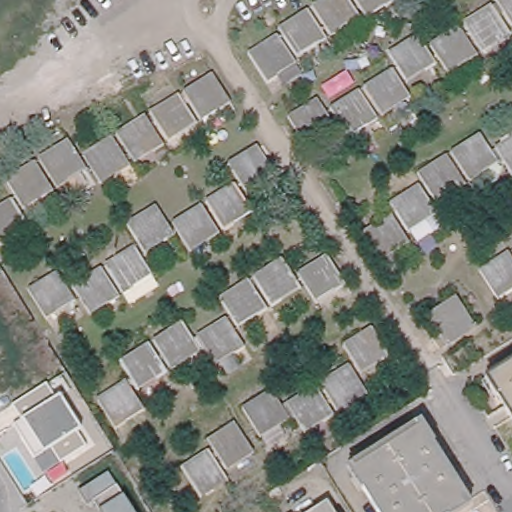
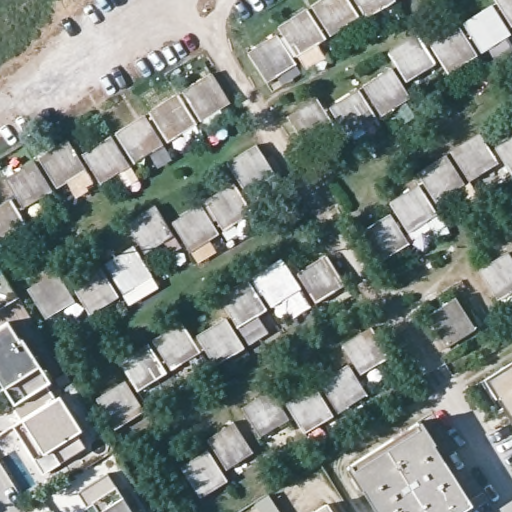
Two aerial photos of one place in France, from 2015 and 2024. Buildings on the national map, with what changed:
unchanged [(313,0),(348,0),(356,12),(329,30),(311,1),(313,0)]
unchanged [(365,13),(357,0),(386,0),(365,13)]
unchanged [(512,21),(499,0),(512,0),(512,21)]
unchanged [(305,5),(323,33),(296,50),(278,22),(305,5)]
unchanged [(495,6),(512,33),(485,51),(467,23),(495,6)]
unchanged [(461,27),(479,54),(451,72),(434,44),(461,27)]
unchanged [(294,60),(265,77),(248,48),(275,31),(294,60)]
unchanged [(420,36),(438,63),(410,81),(393,53),(420,36)]
unchanged [(199,116),(182,87),(210,69),(228,98),(199,116)]
unchanged [(395,70),(412,98),(385,114),(368,87),(395,70)]
unchanged [(149,108),(175,91),(194,119),(167,137),(149,108)]
unchanged [(361,91),(379,119),(351,135),(335,107),(361,91)]
unchanged [(320,99),(337,127),(310,145),(292,117),(320,99)]
unchanged [(160,140),(134,157),(116,129),(142,112),(160,140)]
unchanged [(478,129),(495,158),(467,175),(450,147),(478,129)]
unchanged [(512,171),(495,143),(512,132),(512,171)]
unchanged [(110,133),(128,161),(100,178),(82,150),(110,133)]
unchanged [(83,165),(56,181),(38,153),(65,136),(83,165)]
unchanged [(245,192),(226,163),(254,146),(272,175),(245,192)]
unchanged [(445,151),(462,179),(434,196),(417,168),(445,151)]
unchanged [(32,157),(50,186),(22,203),(5,175),(32,157)]
unchanged [(417,180),(435,209),(407,226),(390,197),(417,180)]
unchanged [(232,184),(250,212),(222,230),(205,202),(232,184)]
unchanged [(9,196),(27,224),(0,241),(0,202),(9,196)]
unchanged [(216,234),(189,250),(171,222),(198,206),(216,234)]
unchanged [(125,224),(153,207),(170,234),(143,252),(125,224)]
unchanged [(389,210),(406,238),(379,255),(362,227),(389,210)]
unchanged [(150,276),(122,293),(104,265),(132,247),(150,276)]
unchanged [(512,250),(512,287),(502,294),(482,265),(511,248),(512,250)]
unchanged [(319,297),(301,269),(329,252),(347,280),(319,297)]
unchanged [(275,301),(257,272),(285,256),(302,284),(275,301)]
unchanged [(117,297),(89,314),(72,285),(98,268),(117,297)]
unchanged [(72,301),(44,318),(26,289),(54,272),(72,301)]
unchanged [(269,304),(241,322),(224,294),(251,277),(269,304)]
unchanged [(449,298),(469,329),(440,346),(421,315),(449,298)]
unchanged [(219,359),(202,332),(229,315),(247,343),(219,359)]
unchanged [(202,346),(175,364),(158,336),(185,318),(202,346)]
new [(0,412),(0,389),(2,388),(0,385),(0,326),(7,321),(18,340),(21,338),(48,381),(47,384),(13,404),(0,412)]
unchanged [(392,352),(364,369),(345,340),(374,323),(392,352)]
unchanged [(151,339),(169,368),(142,385),(124,356),(151,339)]
unchanged [(351,361),(369,390),(341,407),(324,378),(351,361)]
unchanged [(512,413),(490,378),(512,364),(512,413)]
unchanged [(147,406),(120,423),(102,395),(129,378),(147,406)]
unchanged [(309,427),(291,400),(318,382),(335,410),(309,427)]
unchanged [(45,475),(14,425),(22,420),(13,404),(47,384),(87,447),(45,475)]
unchanged [(291,414),(265,431),(247,403),(274,386),(291,414)]
unchanged [(381,512),(352,466),(422,421),(470,497),(449,512),(381,512)]
unchanged [(251,453),(226,469),(208,440),(232,424),(251,453)]
unchanged [(226,482),(200,497),(181,468),(207,452),(226,482)]
unchanged [(86,506),(79,491),(112,472),(125,497),(133,512),(100,512),(94,502),(86,506)]
new [(260,512),(254,502),(266,494),(278,512),(260,512)]
unchanged [(330,512),(305,512),(323,500),(330,512)]

